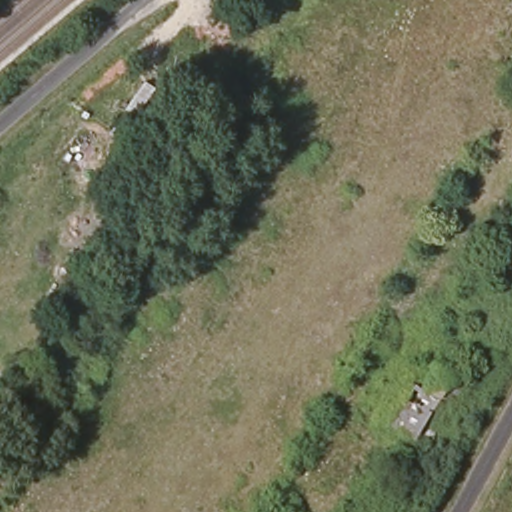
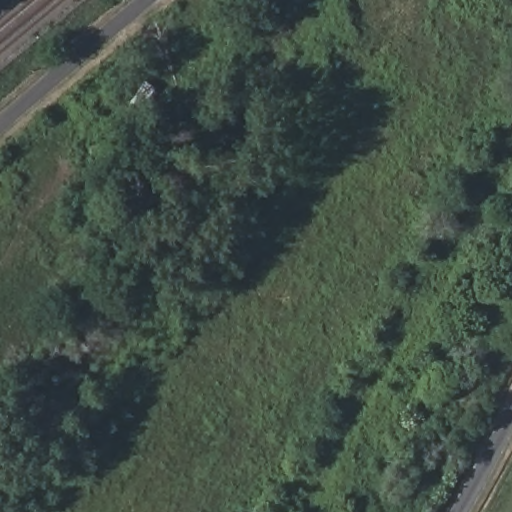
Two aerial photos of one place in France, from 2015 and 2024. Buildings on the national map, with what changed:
unchanged [(440,421),(429,441),(415,433),(425,414),(440,421)]

